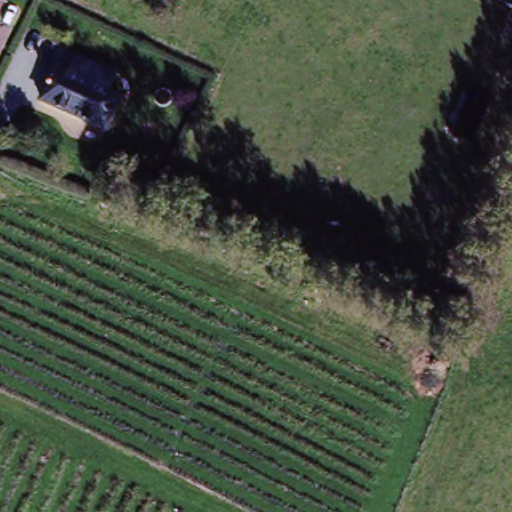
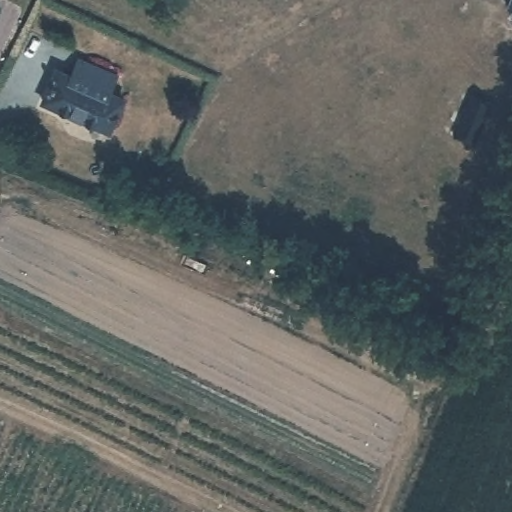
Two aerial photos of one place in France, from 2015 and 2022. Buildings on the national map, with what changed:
unchanged [(507,0),(512,0),(512,5),(506,2),(507,0)]
unchanged [(109,134),(40,103),(55,69),(72,77),(79,62),(116,79),(109,94),(123,100),(109,134)]
unchanged [(458,138),(475,97),(495,105),(478,147),(458,138)]

